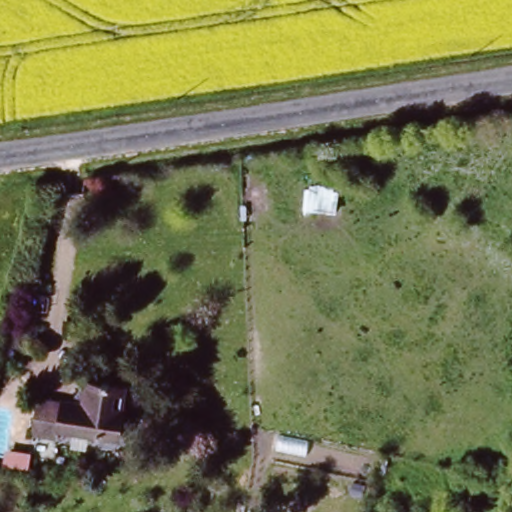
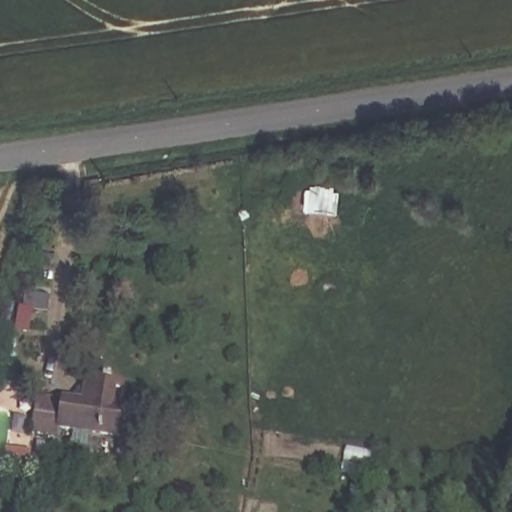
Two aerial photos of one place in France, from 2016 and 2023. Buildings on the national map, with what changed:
unchanged [(40,390),(93,396),(96,376),(135,381),(127,436),(60,426),(58,440),(33,436),(40,390)]

